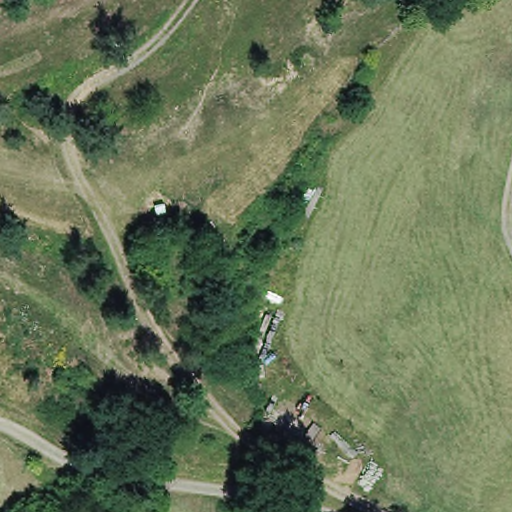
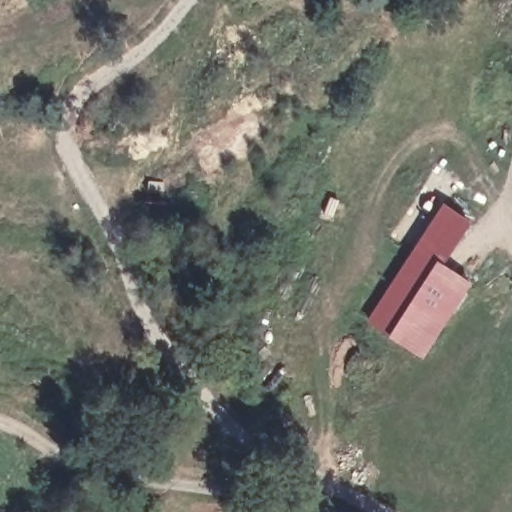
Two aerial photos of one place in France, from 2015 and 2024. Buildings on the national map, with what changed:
new [(470,222),(441,265),(472,286),(425,359),(371,324),(447,204),(470,222)]

